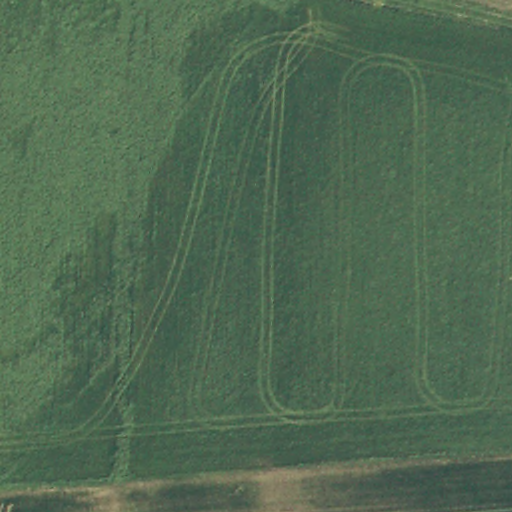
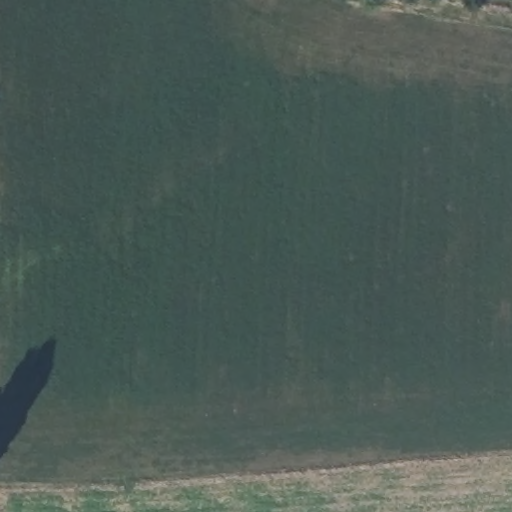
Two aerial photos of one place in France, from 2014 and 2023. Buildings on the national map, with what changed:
[]

